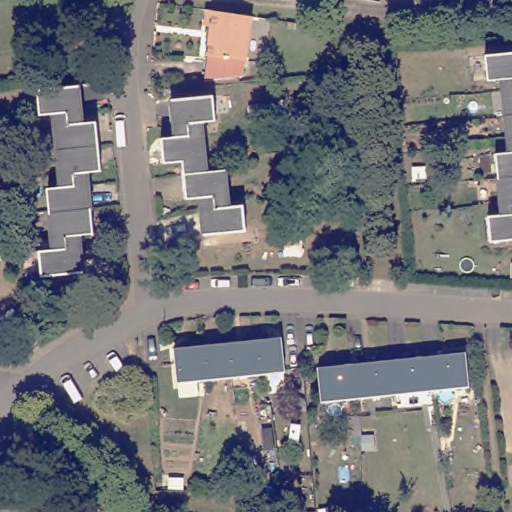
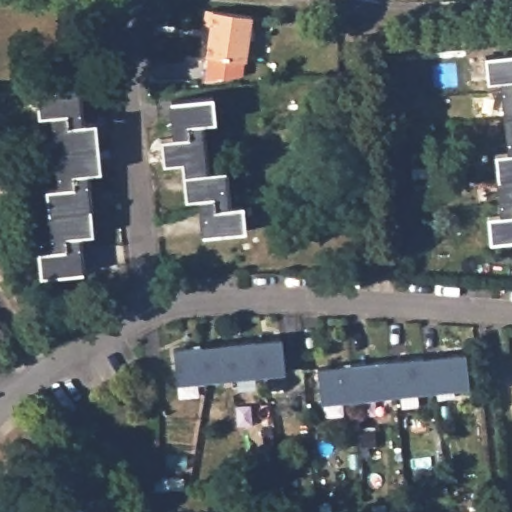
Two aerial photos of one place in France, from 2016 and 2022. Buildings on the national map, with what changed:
unchanged [(248,69),(209,62),(214,34),(206,33),(210,17),(256,24),(248,69)]
unchanged [(492,81),(490,56),(512,54),(512,79),(506,80),(492,81)]
unchanged [(507,91),(506,80),(512,79),(512,116),(510,116),(507,91)]
unchanged [(42,115),(41,90),(84,86),(86,111),(57,114),(42,115)]
unchanged [(176,105),(219,100),(220,126),(207,127),(178,130),(176,105)]
unchanged [(59,125),(57,114),(86,111),(87,122),(100,120),(102,146),(62,151),(59,125)]
unchanged [(510,116),(512,116),(512,136),(510,116)]
unchanged [(211,165),(186,167),(169,170),(166,142),(179,142),(178,130),(207,127),(208,140),(211,165)]
unchanged [(62,151),(102,146),(105,171),(91,172),(64,175),(62,151)]
unchanged [(502,177),(500,154),(512,153),(512,177),(502,177)]
unchanged [(205,202),(190,203),(187,179),(186,167),(211,165),(212,175),(230,174),(232,200),(234,212),(206,215),(205,202)]
unchanged [(95,209),(52,213),(50,189),(65,187),(64,175),(91,172),(92,185),(95,209)]
unchanged [(502,177),(512,177),(512,202),(505,202),(502,177)]
unchanged [(493,242),(492,217),(506,215),(505,202),(512,202),(512,240),(493,242)]
unchanged [(52,213),(95,209),(97,234),(82,235),(56,237),(52,213)]
unchanged [(248,210),(250,235),(207,240),(206,215),(234,212),(248,210)]
unchanged [(87,273),(45,277),(42,251),(57,250),(56,237),(82,235),(84,247),(87,273)]
unchanged [(0,345),(0,330),(7,337),(0,345)]
unchanged [(202,347),(227,345),(254,342),(280,339),(282,372),(257,375),(231,377),(206,380),(178,382),(175,350),(202,347)]
unchanged [(471,355),(473,387),(437,390),(435,358),(471,355)]
unchanged [(435,358),(437,390),(402,393),(398,361),(435,358)]
unchanged [(396,394),(397,408),(366,410),(365,397),(362,365),(398,361),(402,393),(396,394)]
unchanged [(328,401),(325,369),(362,365),(365,397),(328,401)]

